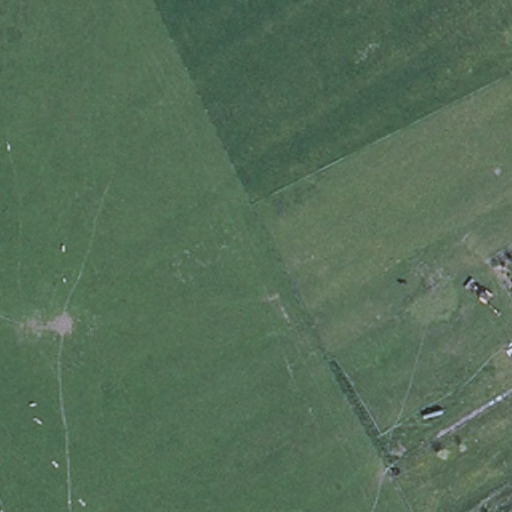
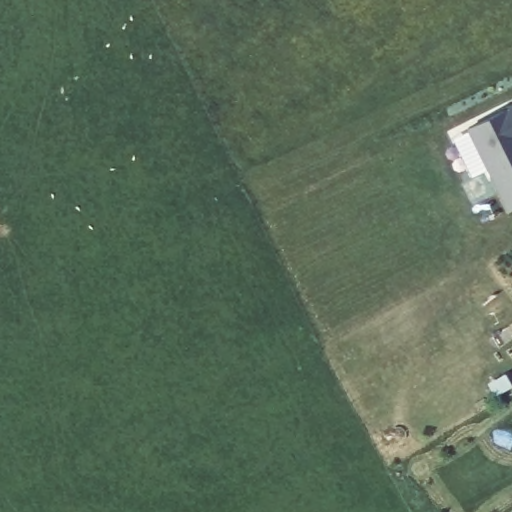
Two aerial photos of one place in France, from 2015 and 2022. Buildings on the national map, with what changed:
new [(507,211),(467,127),(512,104),(512,209),(507,211)]

